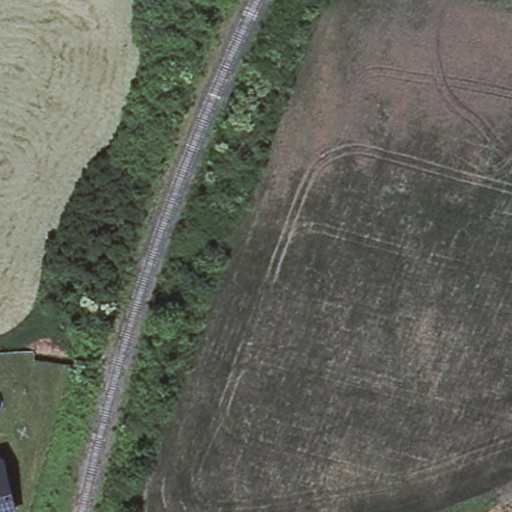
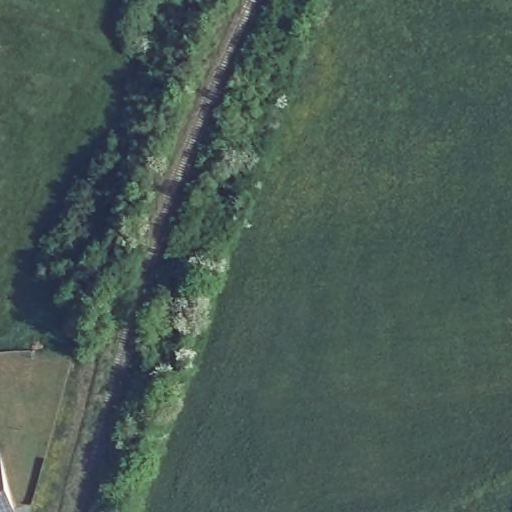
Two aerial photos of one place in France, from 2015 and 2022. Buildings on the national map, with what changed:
unchanged [(1,458),(12,499),(16,511),(12,512),(0,512),(0,454),(1,458)]

